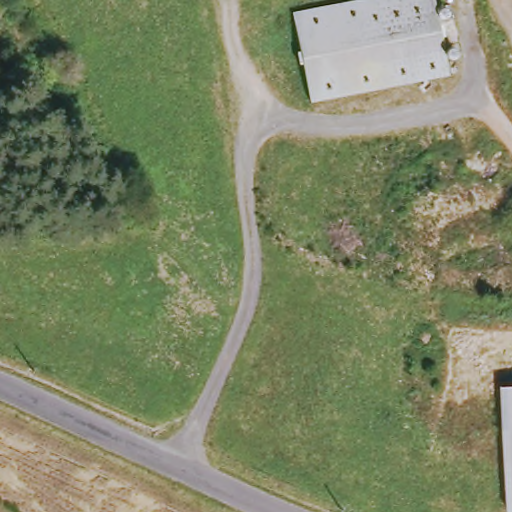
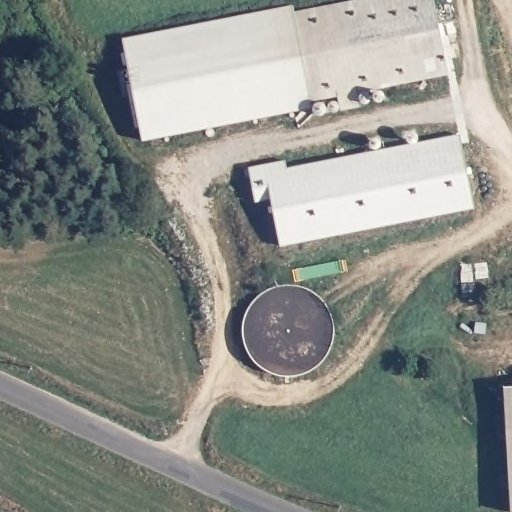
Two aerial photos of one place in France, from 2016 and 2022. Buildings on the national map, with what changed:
new [(295,5),(326,0),(433,0),(451,74),(150,138),(131,35),(295,5)]
demolished [(309,99),(295,10),(363,0),(436,0),(447,76),(309,99)]
new [(256,168),(292,160),(293,167),(463,134),(477,204),(272,247),(256,168)]
unchanged [(512,385),(512,512),(510,512),(504,386),(512,385)]

